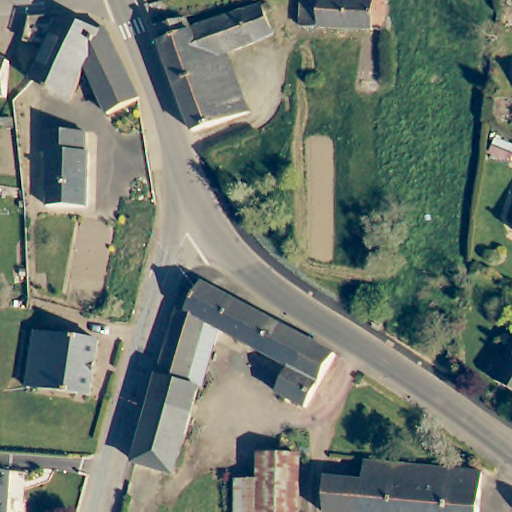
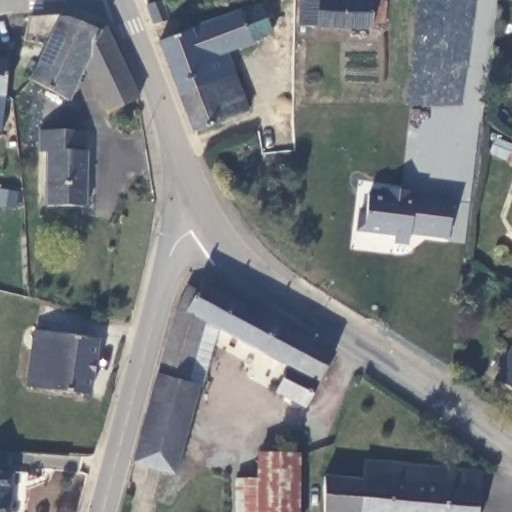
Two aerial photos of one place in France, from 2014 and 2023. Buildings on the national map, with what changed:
unchanged [(264,1),(264,0),(271,0),(264,1)]
unchanged [(382,4),(382,34),(305,30),(299,30),(301,0),(375,3),(382,4)]
unchanged [(155,33),(153,33),(146,14),(161,10),(168,29),(155,33)]
unchanged [(190,37),(259,11),(271,39),(253,50),(225,61),(247,121),(195,140),(184,115),(156,36),(185,26),(190,37)]
unchanged [(22,46),(27,26),(54,23),(98,39),(82,74),(68,106),(29,86),(44,55),(22,46)]
unchanged [(134,107),(106,121),(82,74),(98,39),(99,37),(134,107)]
unchanged [(0,105),(0,67),(7,68),(5,84),(2,105),(0,105)]
unchanged [(85,159),(88,158),(86,213),(46,212),(48,157),(39,157),(40,137),(85,138),(85,159)]
new [(358,210),(366,212),(369,194),(380,195),(381,187),(416,192),(415,194),(453,198),(448,239),(409,236),(408,246),(393,244),(394,237),(356,232),(358,210)]
unchanged [(512,232),(512,236),(510,235),(512,232)]
unchanged [(219,332),(202,389),(198,388),(173,477),(135,466),(153,402),(172,339),(180,313),(191,292),(200,296),(204,289),(235,306),(220,333),(219,332)]
unchanged [(235,306),(335,359),(308,413),(277,397),(291,369),(220,333),(235,306)]
unchanged [(32,335),(95,345),(85,400),(24,389),(32,335)]
unchanged [(512,346),(512,394),(491,382),(512,346)]
unchanged [(253,485),(256,462),(295,462),(294,512),(232,512),(232,485),(253,485)]
unchanged [(323,512),(326,482),(365,486),(368,465),(483,474),(479,512),(323,512)]
unchanged [(5,512),(0,512),(0,475),(8,475),(5,512)]

